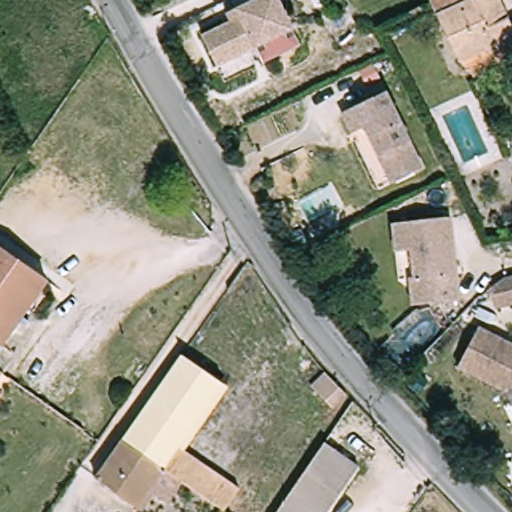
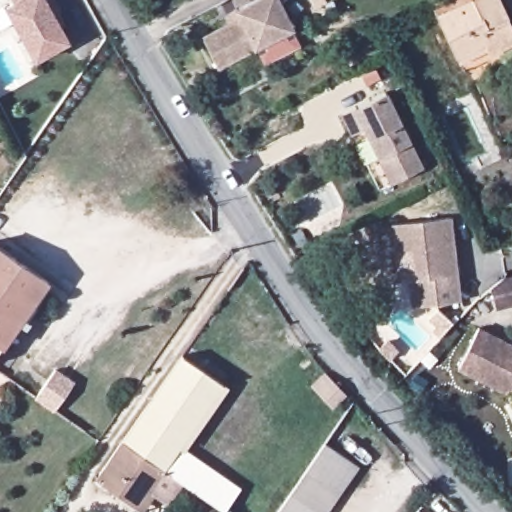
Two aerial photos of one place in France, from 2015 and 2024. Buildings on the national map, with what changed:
new [(61,9),(54,15),(69,42),(34,62),(4,6),(13,1),(12,0),(56,0),(61,9)]
unchanged [(265,57),(258,42),(218,61),(204,31),(232,17),(229,9),(239,5),(248,0),(283,0),(295,25),(294,25),(301,41),(265,57)]
unchanged [(456,54),(439,15),(457,7),(454,0),(499,0),(512,29),(512,44),(490,54),(488,49),(459,62),(456,54)]
unchanged [(384,160),(380,152),(366,122),(353,129),(343,109),(386,88),(415,147),(423,164),(404,172),(392,178),(384,160)]
unchanged [(412,276),(417,275),(413,246),(398,249),(394,221),(453,213),(463,296),(433,300),(416,302),(412,276)]
unchanged [(52,278),(26,315),(33,320),(28,327),(21,321),(0,351),(0,241),(36,267),(52,278)]
unchanged [(507,277),(512,275),(512,305),(501,309),(495,288),(507,277)]
unchanged [(508,390),(460,367),(480,327),(512,342),(512,387),(508,390)]
unchanged [(227,385),(181,448),(167,470),(127,440),(187,355),(227,385)]
unchanged [(340,407),(332,415),(313,391),(322,384),(333,377),(337,381),(347,392),(352,398),(340,407)]
unchanged [(328,512),(279,512),(329,438),(363,461),(328,512)]
unchanged [(153,496),(141,511),(140,507),(98,477),(127,440),(166,469),(166,470),(184,483),(167,505),(153,496)]
unchanged [(181,448),(239,493),(226,512),(220,512),(167,470),(181,448)]

